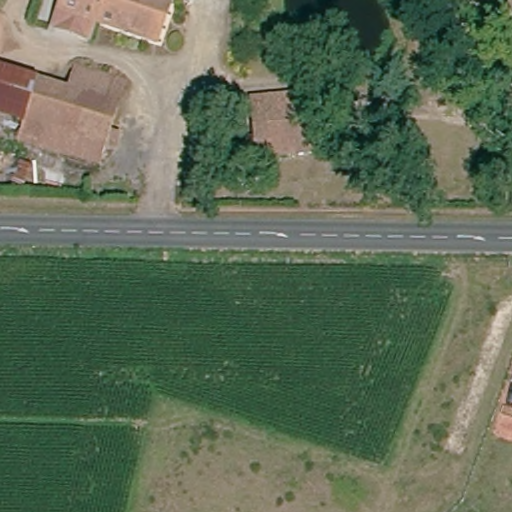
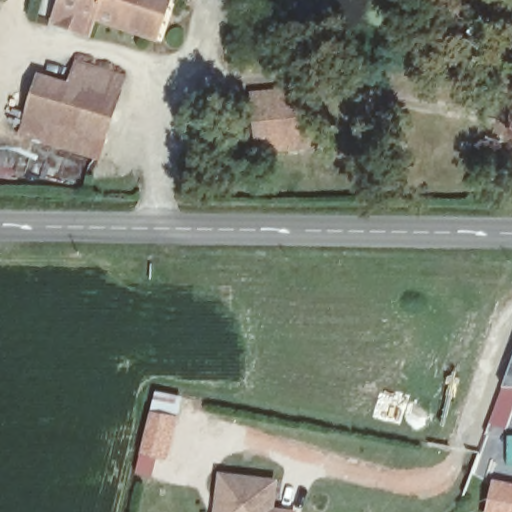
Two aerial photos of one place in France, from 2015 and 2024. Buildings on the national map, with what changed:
unchanged [(157,40),(109,24),(63,10),(67,0),(171,0),(157,40)]
unchanged [(57,29),(63,10),(100,21),(93,41),(57,29)]
unchanged [(0,106),(0,54),(42,67),(26,115),(0,106)]
unchanged [(109,146),(99,143),(94,159),(20,135),(26,115),(42,67),(72,77),(78,57),(123,71),(105,123),(115,126),(109,146)]
unchanged [(250,125),(259,125),(259,86),(301,87),(300,107),(325,107),(326,145),(300,145),(259,145),(249,146),(250,125)]
new [(512,360),(512,388),(504,386),(512,360)]
new [(512,414),(506,430),(490,425),(504,386),(512,388),(512,414)]
new [(151,410),(176,415),(166,453),(156,451),(150,470),(136,468),(141,448),(151,410)]
new [(507,436),(512,436),(512,466),(507,466),(507,436)]
new [(274,485),(270,512),(215,512),(220,478),(274,485)]
new [(512,512),(486,512),(493,480),(512,484),(512,512)]
new [(271,512),(271,508),(299,512),(271,512)]

